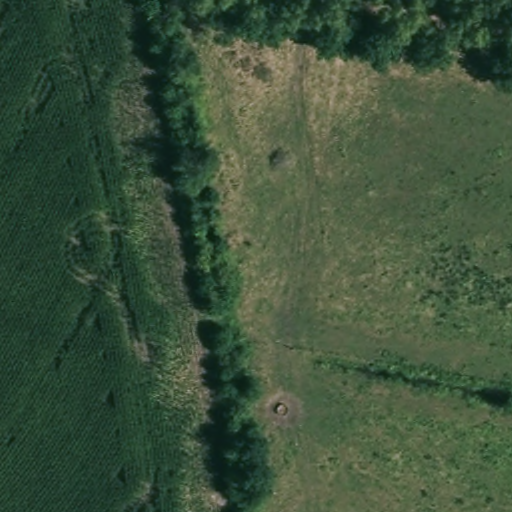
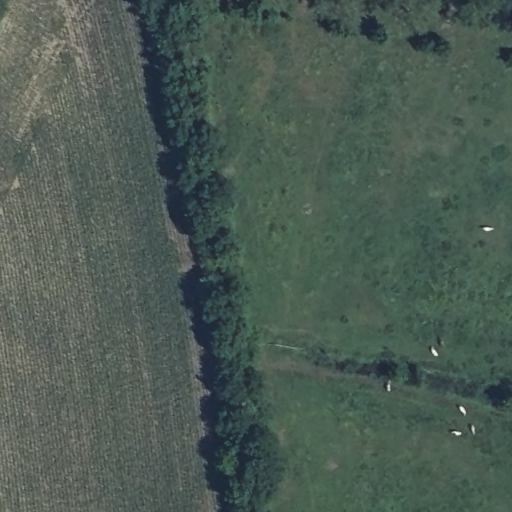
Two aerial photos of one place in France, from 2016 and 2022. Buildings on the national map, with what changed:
[]

